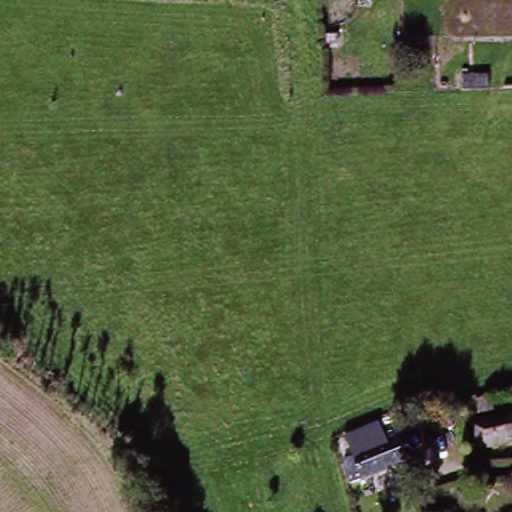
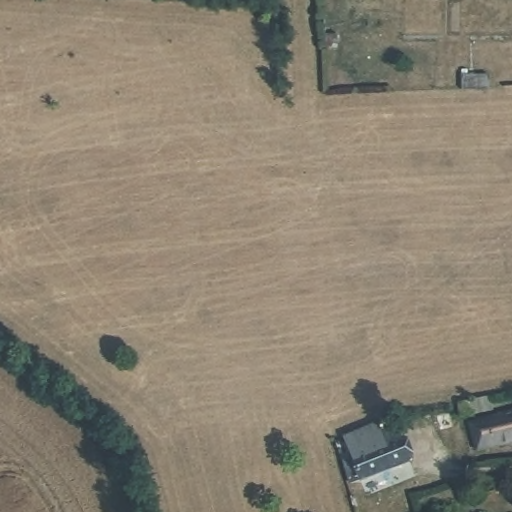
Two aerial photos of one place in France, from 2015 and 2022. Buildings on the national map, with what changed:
unchanged [(471,415),(497,412),(498,422),(473,425),(471,415)]
unchanged [(347,440),(379,428),(387,432),(392,430),(392,427),(408,423),(419,459),(359,477),(347,440)]
unchanged [(485,430),(512,424),(512,445),(488,449),(485,430)]

